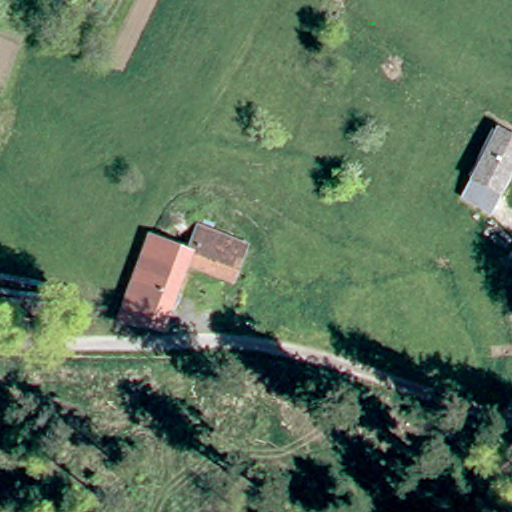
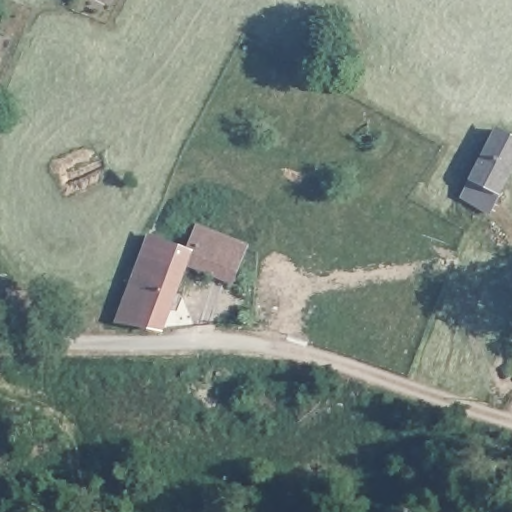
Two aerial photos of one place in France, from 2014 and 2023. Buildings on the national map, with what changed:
unchanged [(476,209),(461,201),(501,135),(512,141),(512,184),(490,218),(476,209)]
unchanged [(194,258),(208,230),(230,242),(215,279),(190,269),(194,258)]
unchanged [(163,333),(121,315),(153,243),(194,258),(190,269),(163,333)]

